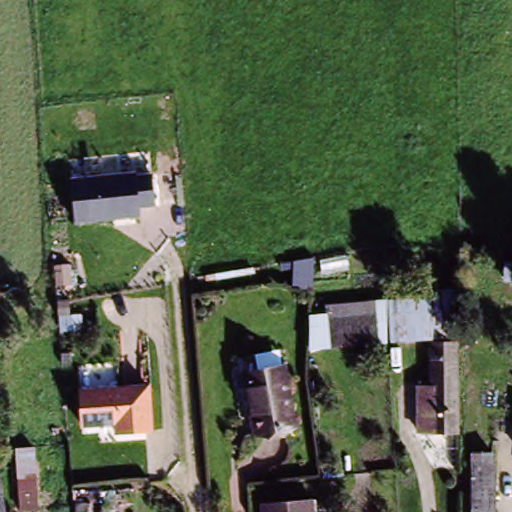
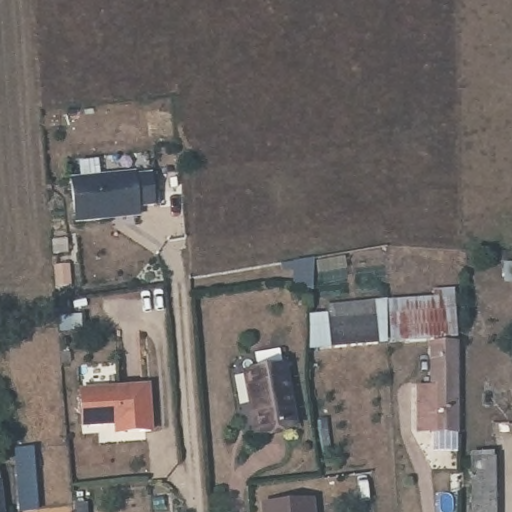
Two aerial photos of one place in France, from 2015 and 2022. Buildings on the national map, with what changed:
unchanged [(75,224),(71,181),(135,174),(135,177),(152,176),(155,207),(139,209),(140,218),(75,224)]
unchanged [(403,320),(402,310),(441,305),(444,338),(415,342),(385,346),(385,331),(384,322),(403,320)]
unchanged [(384,322),(385,331),(322,338),(321,317),(320,310),(335,307),(337,313),(384,307),(384,322)]
unchanged [(438,428),(437,412),(427,412),(425,377),(437,376),(437,347),(457,347),(457,375),(459,429),(438,428)]
unchanged [(291,370),(293,430),(255,434),(250,375),(291,370)]
unchanged [(149,387),(150,432),(119,433),(117,424),(81,426),(79,392),(149,387)]
unchanged [(19,510),(16,482),(12,482),(12,466),(12,450),(32,448),(34,465),(37,508),(19,510)]
unchanged [(491,455),(490,512),(467,512),(466,455),(491,455)]
unchanged [(312,512),(262,512),(262,508),(311,504),(312,512)]

